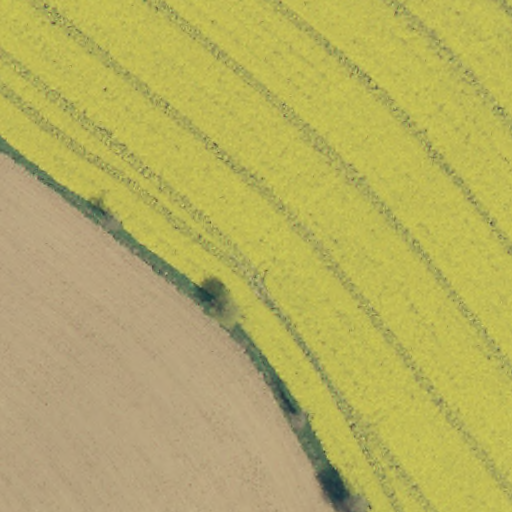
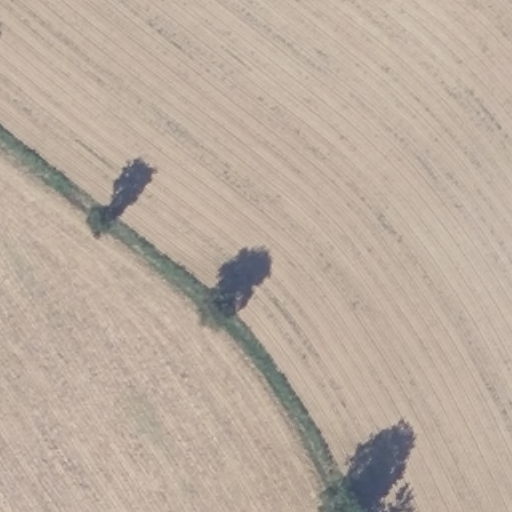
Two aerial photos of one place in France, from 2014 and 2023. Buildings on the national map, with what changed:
[]

